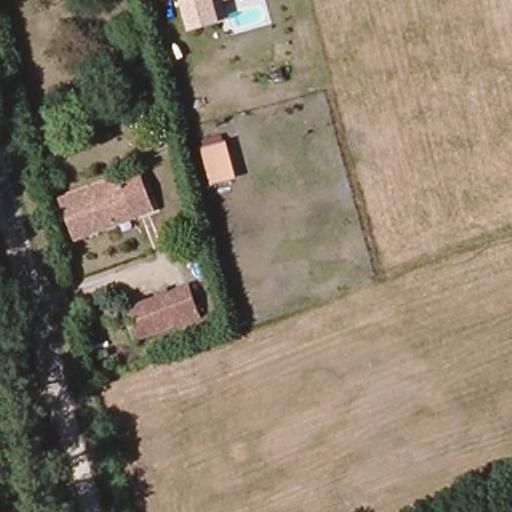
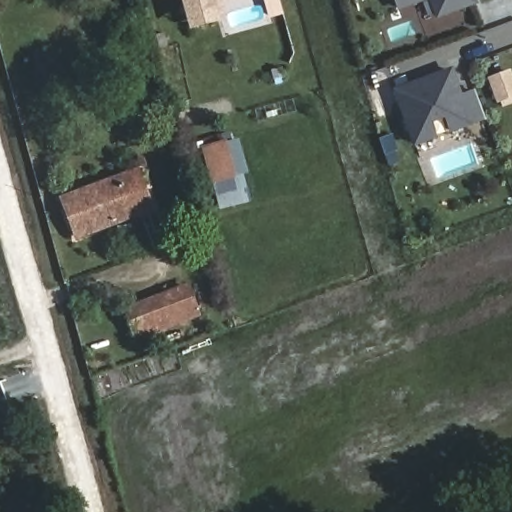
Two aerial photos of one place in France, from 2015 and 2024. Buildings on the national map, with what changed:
unchanged [(222,1),(227,20),(219,22),(188,30),(180,0),(225,0),(222,1)]
new [(397,11),(393,0),(428,0),(397,11)]
new [(436,19),(429,0),(476,0),(477,4),(436,19)]
new [(483,120),(472,124),(448,132),(445,118),(432,123),(436,137),(412,145),(393,90),(452,69),(460,93),(473,90),(483,120)]
new [(510,71),(512,78),(512,104),(506,106),(503,100),(501,101),(492,78),(510,71)]
new [(231,144),(238,173),(222,178),(214,148),(231,144)]
unchanged [(155,213),(76,244),(57,199),(138,167),(155,213)]
unchanged [(200,319),(134,343),(122,310),(189,284),(200,319)]

